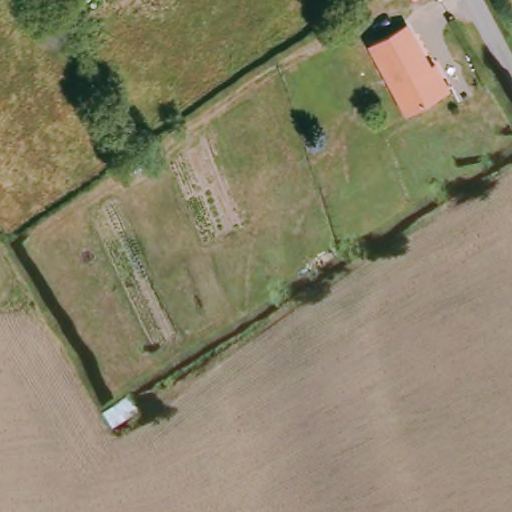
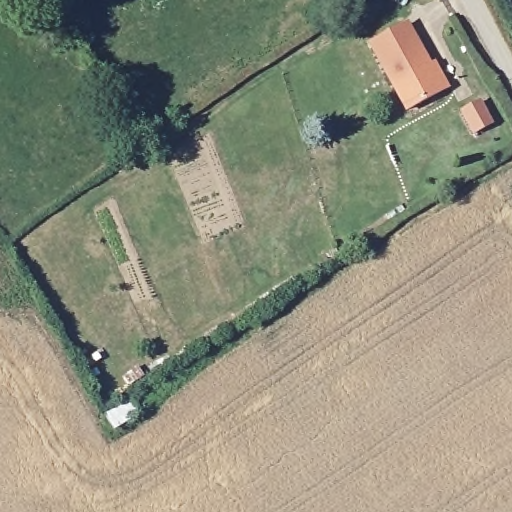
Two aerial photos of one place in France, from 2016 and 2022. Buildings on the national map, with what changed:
unchanged [(456,85),(450,89),(415,110),(373,48),(408,25),(434,64),(440,60),(456,85)]
unchanged [(118,433),(105,417),(134,399),(145,417),(118,433)]

